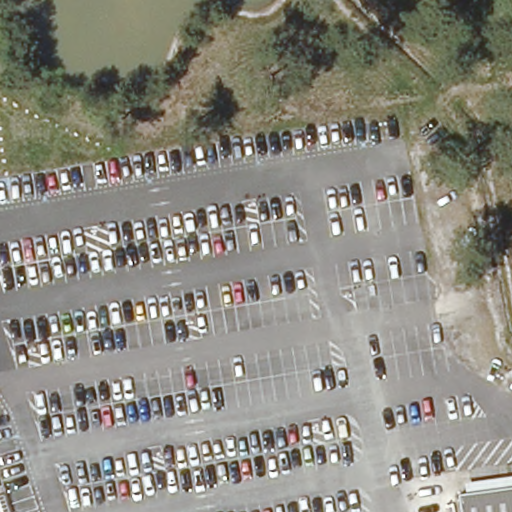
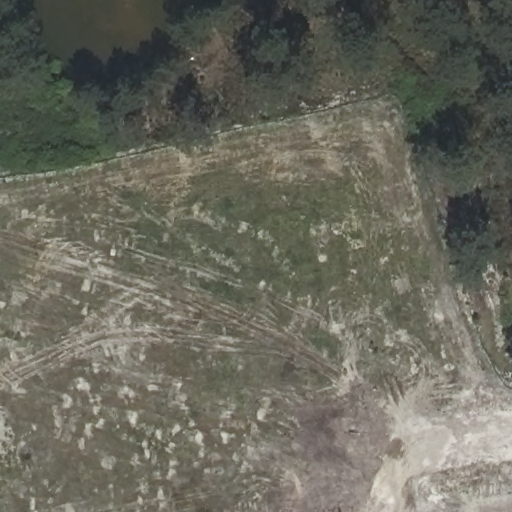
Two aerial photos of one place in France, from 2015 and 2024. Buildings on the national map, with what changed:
demolished [(458,512),(455,494),(512,485),(512,512),(458,512)]

